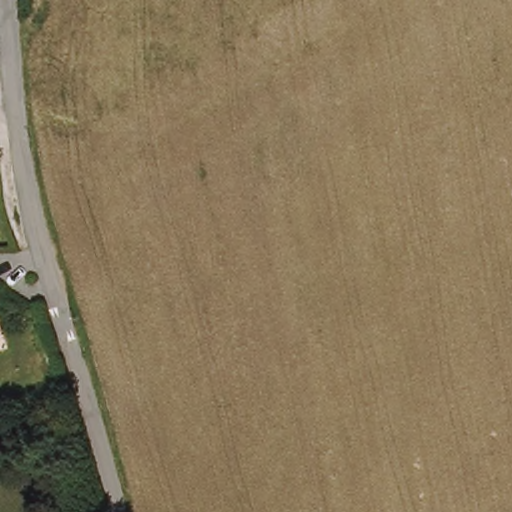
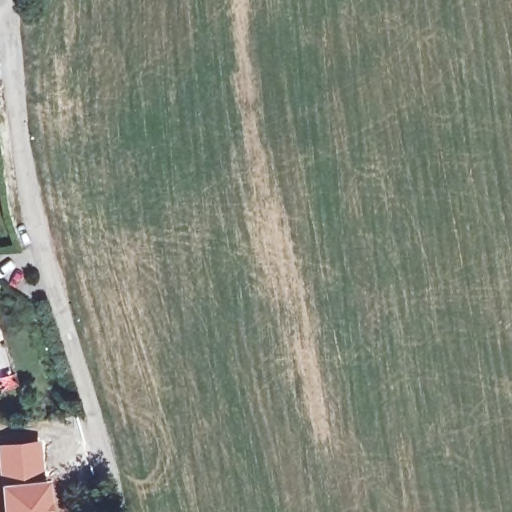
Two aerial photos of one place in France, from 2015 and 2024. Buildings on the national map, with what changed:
new [(45,472),(30,475),(30,479),(16,481),(15,476),(0,476),(0,442),(43,439),(45,472)]
new [(16,481),(30,479),(50,479),(53,512),(2,512),(0,482),(16,481)]

